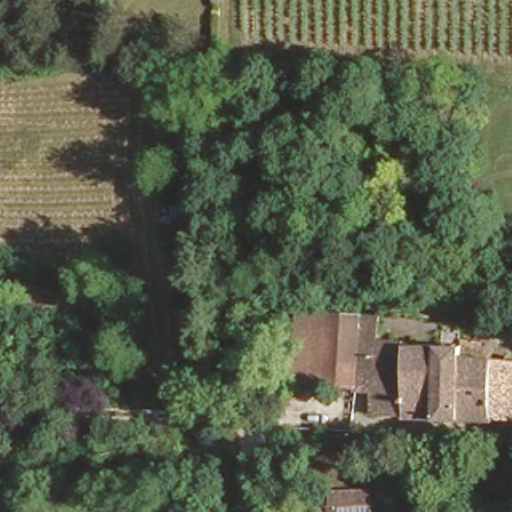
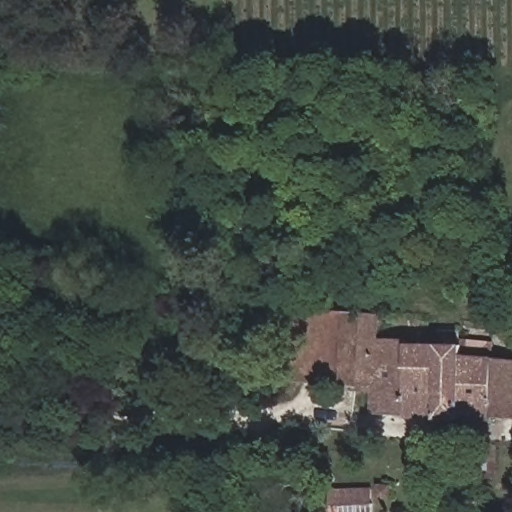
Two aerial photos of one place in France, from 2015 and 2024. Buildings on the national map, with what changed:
unchanged [(335,377),(337,308),(364,310),(379,310),(379,305),(392,305),(392,313),(391,337),(416,338),(419,342),(445,342),(448,343),(476,344),(476,358),(512,358),(512,411),(390,407),(389,383),(368,383),(367,378),(335,377)]
unchanged [(335,377),(305,376),(308,307),(337,308),(335,377)]
unchanged [(378,492),(397,493),(397,509),(377,508),(378,492)]

